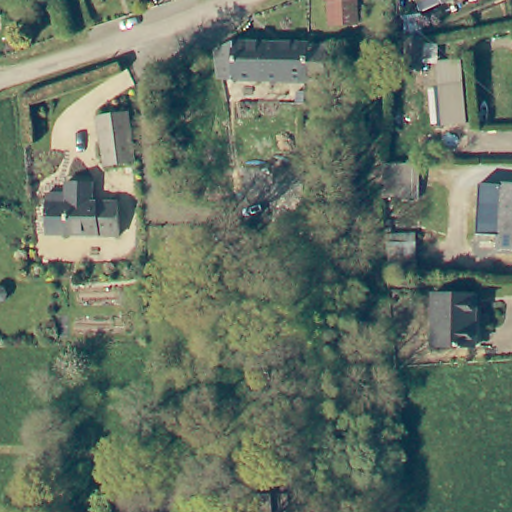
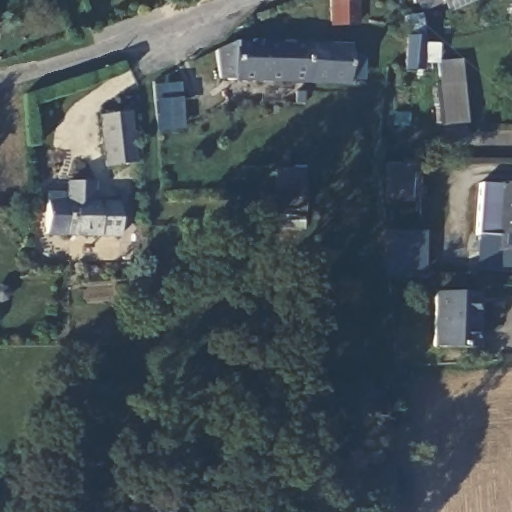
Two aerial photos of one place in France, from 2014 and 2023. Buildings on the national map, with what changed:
unchanged [(330,27),(330,0),(358,0),(358,26),(330,27)]
unchanged [(456,0),(445,6),(427,15),(419,0),(456,0)]
unchanged [(420,73),(405,73),(406,40),(422,40),(420,73)]
unchanged [(351,85),(331,84),(312,83),(310,83),(263,82),(236,82),(222,82),(216,54),(237,45),(264,45),(313,46),(333,46),(352,47),(352,50),(351,85)]
new [(156,136),(149,84),(179,80),(185,132),(156,136)]
unchanged [(102,119),(127,116),(132,164),(107,167),(102,119)]
unchanged [(419,166),(418,202),(384,202),(383,166),(419,166)]
unchanged [(501,185),(512,186),(512,255),(496,255),(501,185)]
unchanged [(121,238),(49,236),(49,197),(71,197),(71,187),(89,187),(89,206),(121,206),(121,238)]
unchanged [(304,214),(277,214),(277,190),(304,189),(304,214)]
unchanged [(413,274),(385,276),(380,249),(410,247),(413,274)]
unchanged [(478,297),(475,347),(433,345),(437,295),(478,297)]

